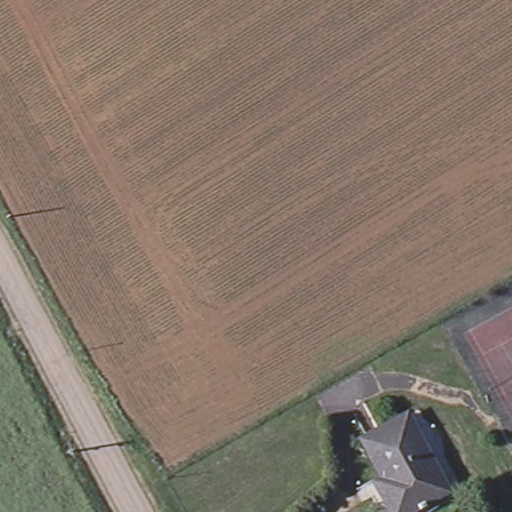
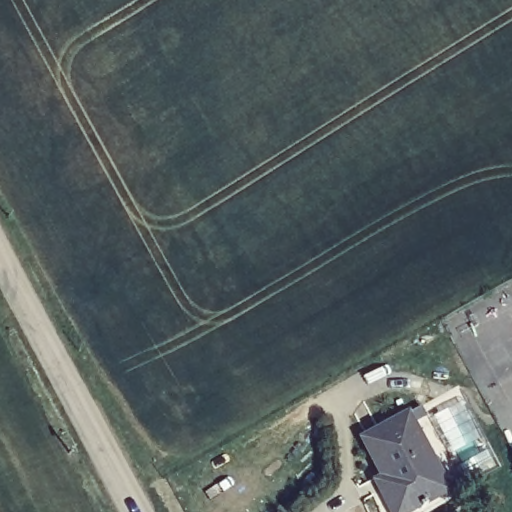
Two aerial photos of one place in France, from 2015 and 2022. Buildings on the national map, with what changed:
unchanged [(379,512),(365,487),(370,477),(376,466),(357,428),(402,407),(424,451),(430,447),(437,459),(430,462),(440,482),(443,488),(407,512),(379,512)]

